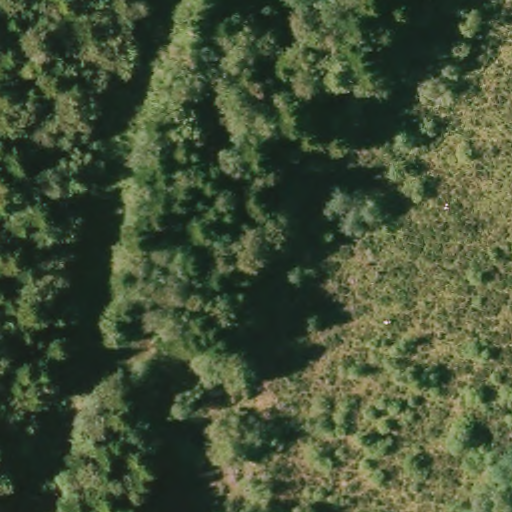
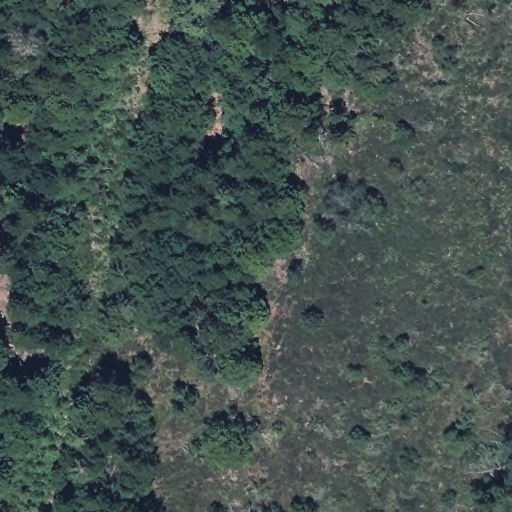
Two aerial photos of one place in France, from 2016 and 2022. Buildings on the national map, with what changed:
[]

